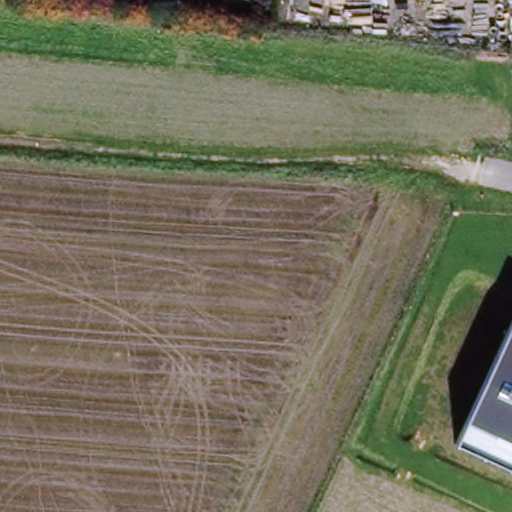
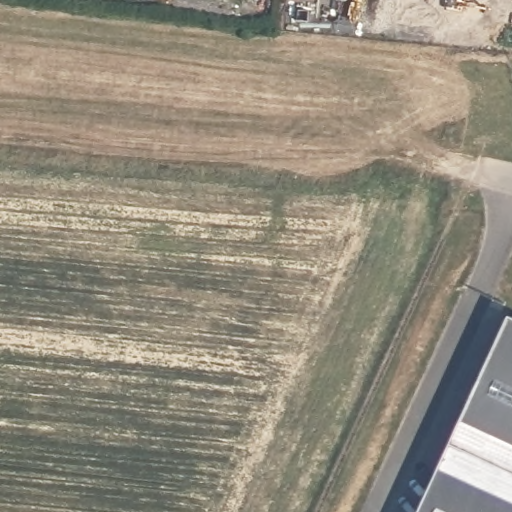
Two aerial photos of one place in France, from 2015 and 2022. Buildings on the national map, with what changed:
unchanged [(512,472),(454,447),(512,322),(512,472)]
new [(512,512),(424,512),(454,447),(512,472),(512,512)]

